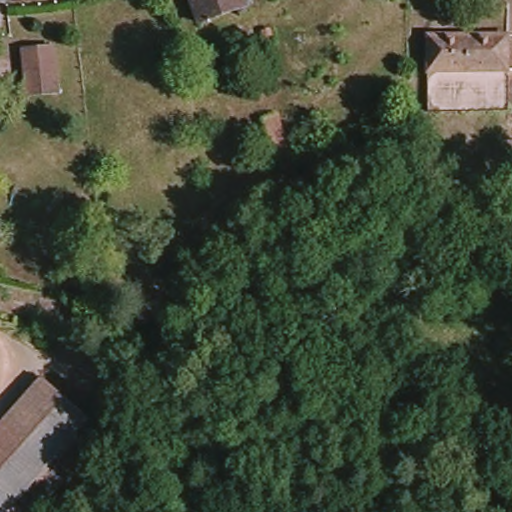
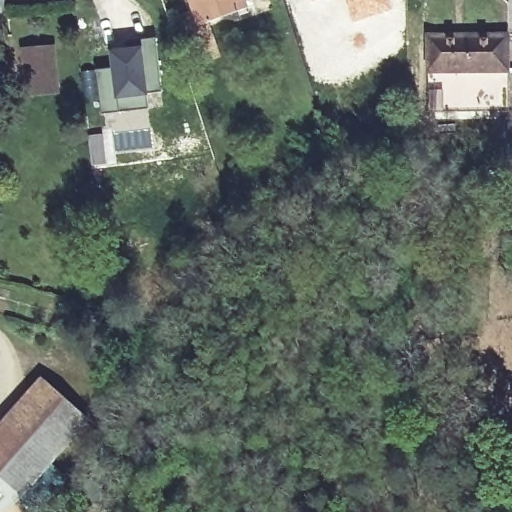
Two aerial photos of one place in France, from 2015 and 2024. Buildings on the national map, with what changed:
unchanged [(189,0),(243,0),(245,5),(197,23),(189,0)]
new [(310,1),(310,0),(314,0),(310,1)]
new [(392,8),(352,22),(345,0),(390,0),(392,8)]
unchanged [(429,21),(507,19),(508,96),(430,96),(429,21)]
new [(110,66),(108,49),(141,44),(141,39),(155,36),(162,91),(147,93),(149,107),(100,113),(99,99),(85,101),(80,71),(110,66)]
unchanged [(24,52),(53,49),(58,94),(29,98),(24,52)]
unchanged [(264,119),(276,114),(296,167),(283,172),(264,119)]
new [(112,130),(116,164),(91,167),(87,134),(112,130)]
unchanged [(85,419),(1,512),(0,512),(0,425),(40,379),(85,419)]
unchanged [(100,503),(101,440),(116,440),(116,504),(100,503)]

